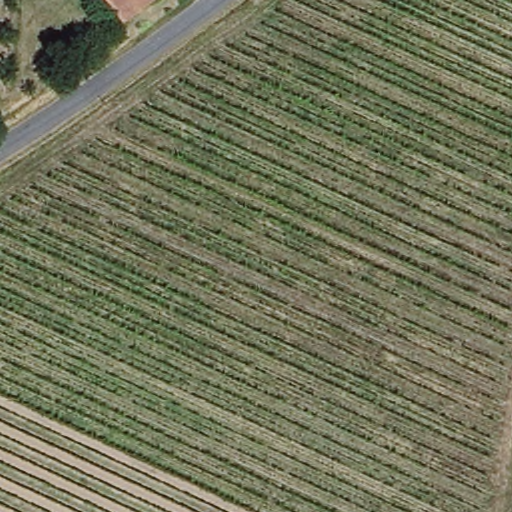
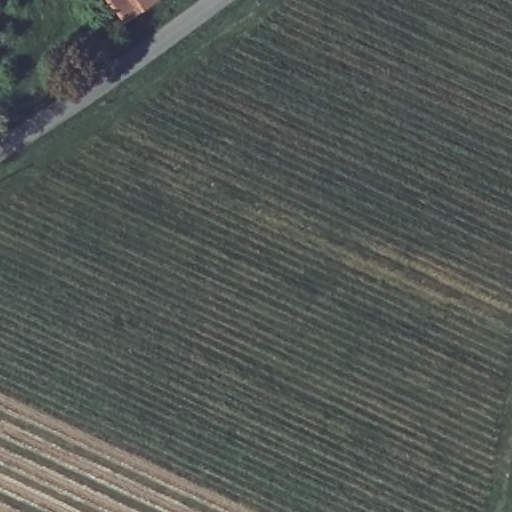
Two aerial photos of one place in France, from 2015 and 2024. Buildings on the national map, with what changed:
unchanged [(111,0),(155,0),(126,20),(111,0)]

